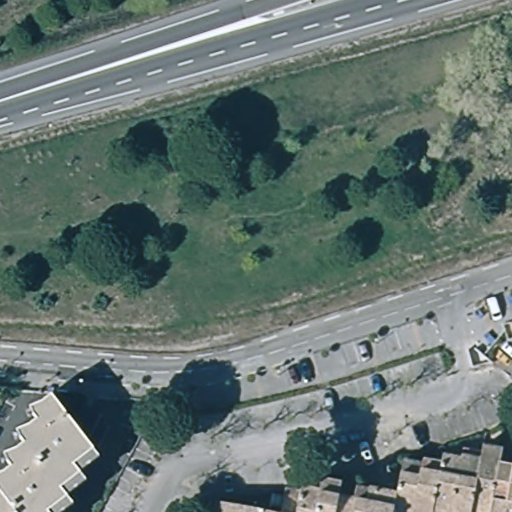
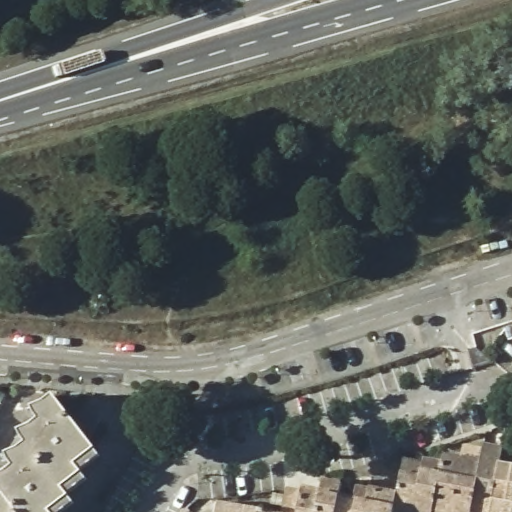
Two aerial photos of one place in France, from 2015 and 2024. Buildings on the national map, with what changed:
unchanged [(12,464),(6,455),(25,440),(20,431),(40,415),(34,406),(53,392),(96,450),(76,465),(82,472),(64,487),(70,496),(50,511),(51,512),(0,512),(0,473),(12,464)]
unchanged [(300,488),(301,485),(319,488),(322,477),(341,482),(339,495),(365,500),(368,487),(396,492),(404,458),(423,462),(422,471),(438,473),(442,452),(460,456),(463,446),(479,450),(481,442),(501,447),(499,459),(512,462),(512,512),(488,512),(489,512),(471,507),(469,512),(279,512),(285,486),(300,488)]
unchanged [(279,512),(216,512),(219,498),(279,512)]

